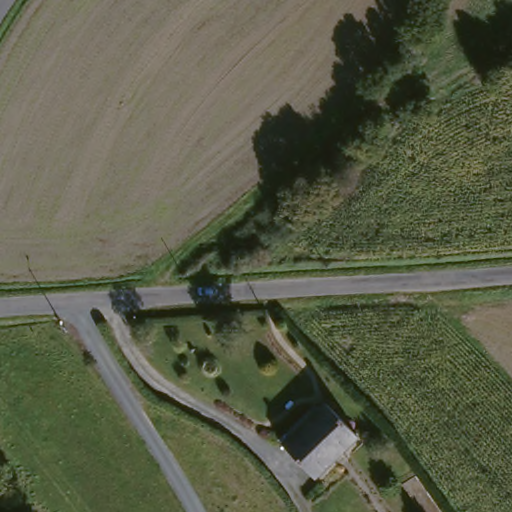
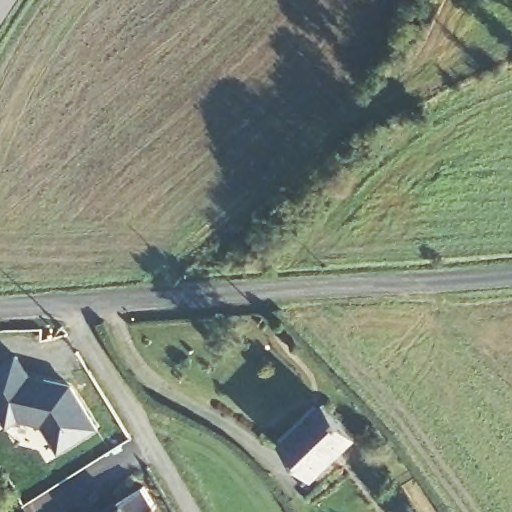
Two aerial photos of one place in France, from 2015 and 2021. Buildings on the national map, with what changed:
new [(30,374),(71,383),(99,427),(60,452),(43,423),(19,418),(8,425),(0,412),(0,363),(17,353),(30,374)]
unchanged [(330,404),(360,436),(319,475),(289,443),(330,404)]
new [(118,502),(144,486),(156,507),(152,510),(153,512),(104,512),(119,503),(118,502)]

